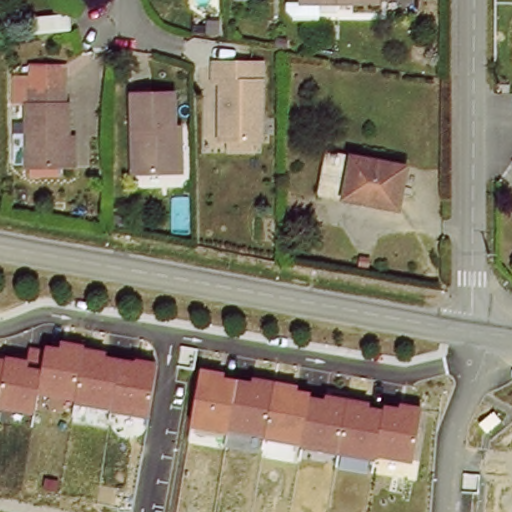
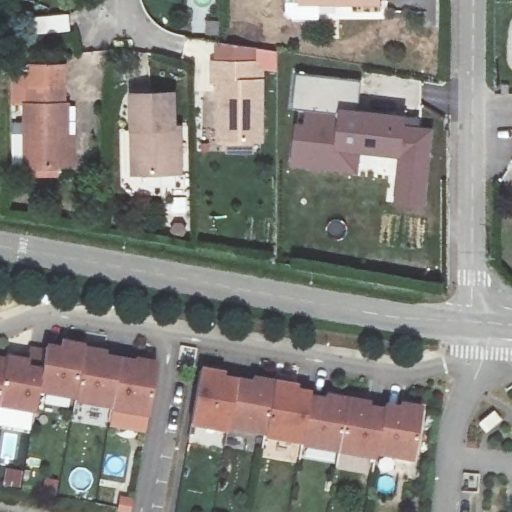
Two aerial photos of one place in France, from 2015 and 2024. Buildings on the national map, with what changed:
new [(265,58),(217,57),(216,42),(276,52),(276,71),(265,69),(265,58)]
unchanged [(229,146),(229,134),(222,134),(223,76),(217,75),(217,57),(265,58),(263,136),(256,136),(257,147),(229,146)]
unchanged [(13,103),(13,77),(30,77),(29,64),(66,64),(65,86),(32,85),(32,101),(27,101),(13,103)]
new [(361,82),(358,108),(408,116),(406,124),(435,127),(425,208),(393,205),(399,156),(361,151),(358,173),(289,164),(296,121),(303,123),(307,110),(292,108),(297,74),(361,82)]
unchanged [(74,168),(67,168),(26,166),(27,101),(32,101),(32,85),(65,86),(65,104),(69,103),(69,135),(74,136),(74,168)]
unchanged [(135,177),(136,144),(128,144),(129,98),(166,97),(177,98),(177,142),(177,176),(135,177)]
demolished [(415,205),(333,192),(339,148),(421,161),(415,205)]
unchanged [(147,418),(39,394),(34,415),(0,410),(0,356),(6,357),(7,355),(28,358),(30,346),(44,349),(46,344),(60,346),(60,339),(83,344),(83,347),(107,351),(108,356),(133,360),(134,356),(157,362),(147,418)]
unchanged [(224,371),(224,375),(250,379),(251,375),(300,383),(299,391),(310,392),(310,396),(325,398),(326,393),(370,400),(370,405),(384,407),(386,404),(399,406),(400,403),(422,407),(412,463),(376,457),(375,461),(191,426),(202,367),(224,371)]

